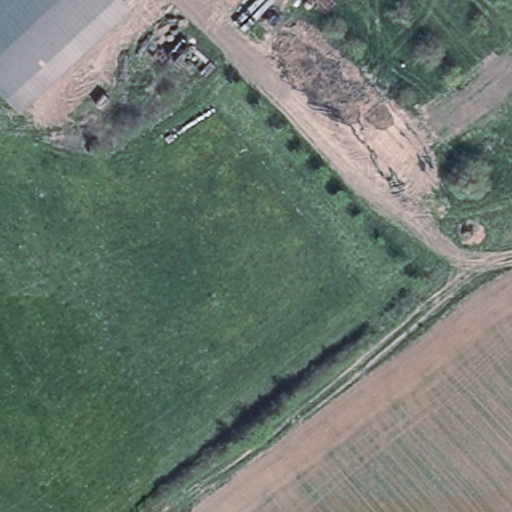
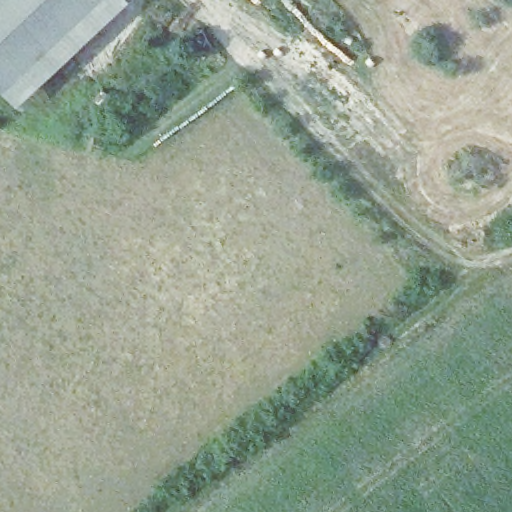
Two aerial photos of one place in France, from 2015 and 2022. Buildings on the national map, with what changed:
unchanged [(1,89),(0,88),(0,0),(91,0),(1,89)]
unchanged [(12,101),(1,89),(91,0),(118,0),(12,101)]

